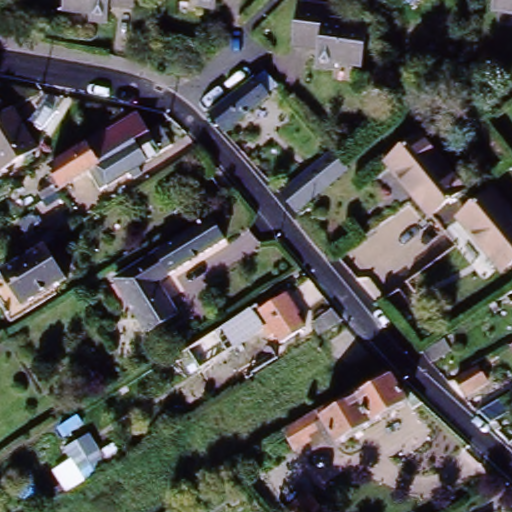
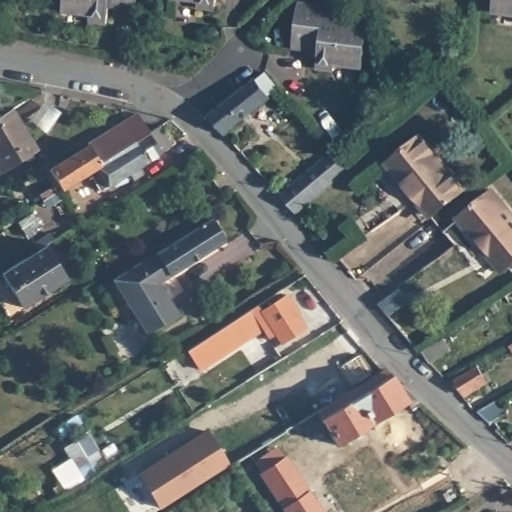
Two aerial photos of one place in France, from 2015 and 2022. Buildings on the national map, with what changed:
unchanged [(111,4),(110,21),(94,19),(94,13),(67,10),(68,0),(138,0),(138,6),(111,4)]
unchanged [(202,1),(203,0),(220,0),(219,4),(202,1)]
unchanged [(496,0),(512,0),(512,14),(495,11),(496,0)]
unchanged [(368,26),(362,68),(335,63),(335,69),(317,66),(319,50),(294,46),(300,1),(334,6),(332,21),(368,26)]
unchanged [(271,93),(226,130),(212,112),(216,109),(257,75),(271,93)]
unchanged [(7,111),(10,110),(34,152),(0,173),(0,116),(7,111)]
unchanged [(125,141),(83,168),(56,185),(45,169),(132,111),(145,129),(125,141)]
unchanged [(125,141),(145,129),(147,126),(155,121),(167,140),(95,187),(83,168),(125,141)]
unchanged [(512,260),(498,272),(455,219),(440,232),(431,220),(427,215),(384,164),(416,137),(458,189),(465,197),(472,204),(487,192),(512,221),(512,260)]
unchanged [(346,170),(295,212),(281,192),(331,151),(346,170)]
unchanged [(41,204),(37,198),(30,188),(44,179),(50,189),(55,195),(41,204)]
unchanged [(20,226),(33,218),(40,229),(27,237),(20,226)]
unchanged [(140,325),(123,300),(111,280),(192,230),(205,249),(142,288),(159,314),(140,325)]
unchanged [(51,238),(74,275),(6,318),(0,307),(0,300),(7,294),(0,284),(0,270),(51,238)]
unchanged [(512,290),(512,300),(511,301),(506,294),(512,290)]
unchanged [(225,324),(257,304),(260,308),(285,292),(302,319),(300,320),(305,328),(281,343),(275,333),(270,336),(263,327),(268,323),(265,317),(239,334),(241,339),(235,343),(225,324)]
unchanged [(342,322),(320,335),(314,326),(335,313),(342,322)]
unchanged [(188,347),(215,330),(226,349),(200,366),(188,347)]
unchanged [(416,352),(423,348),(438,339),(444,349),(422,363),(416,352)]
demolished [(277,358),(251,374),(243,362),(252,356),(247,348),(255,342),(260,351),(269,345),(277,358)]
unchanged [(457,384),(479,370),(487,384),(465,397),(457,384)]
unchanged [(418,406),(410,411),(405,406),(335,448),(330,439),(313,448),(310,442),(293,452),(282,432),(381,372),(418,406)]
unchanged [(492,424),(477,412),(495,402),(506,413),(492,424)]
new [(207,431),(230,467),(161,509),(139,473),(207,431)]
unchanged [(89,433),(107,467),(81,483),(61,448),(89,433)]
unchanged [(321,512),(288,512),(279,499),(300,484),(321,512)]

